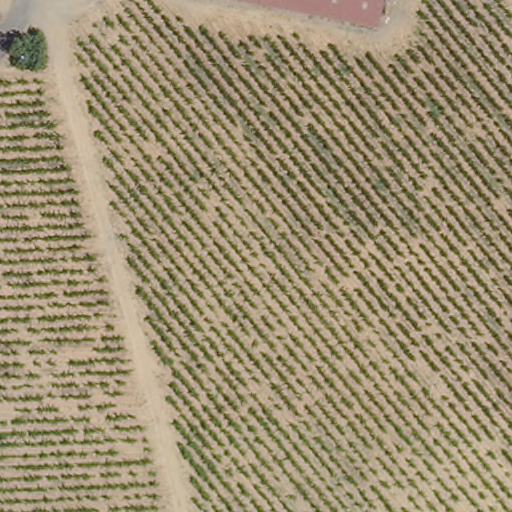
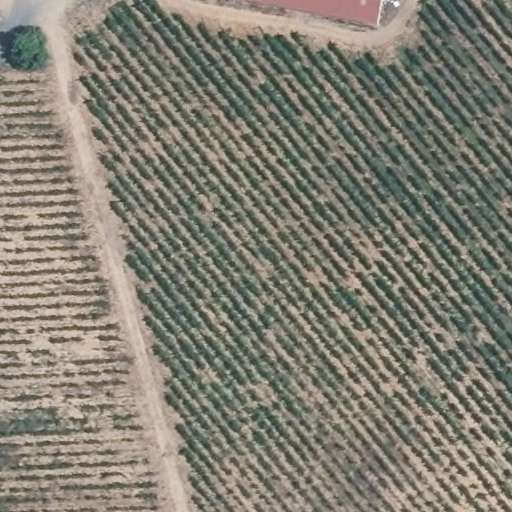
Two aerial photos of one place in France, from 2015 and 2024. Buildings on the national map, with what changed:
unchanged [(377,35),(190,0),(383,0),(377,35)]
unchanged [(0,23),(0,16),(3,21),(0,23)]

